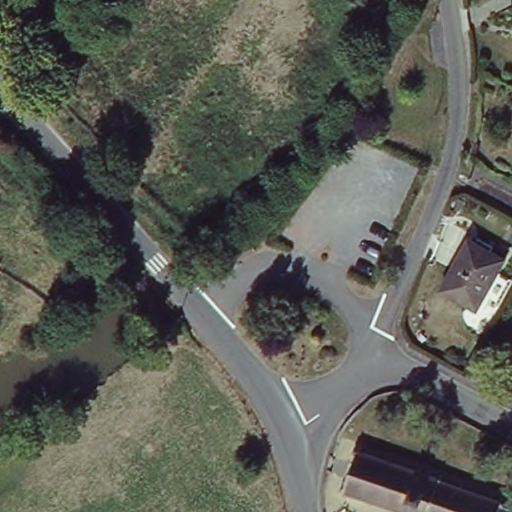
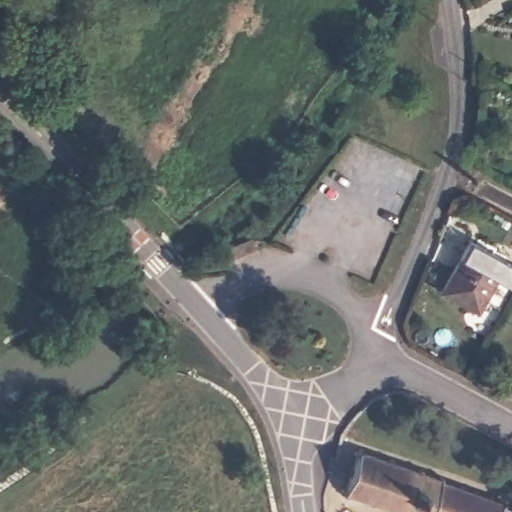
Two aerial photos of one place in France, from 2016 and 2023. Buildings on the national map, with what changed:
unchanged [(512,263),(512,288),(494,278),(475,309),(440,289),(468,239),(512,263)]
unchanged [(129,268),(139,278),(136,282),(132,287),(121,277),(127,271),(129,268)]
unchanged [(362,450),(363,447),(367,447),(366,451),(391,460),(392,457),(396,458),(395,461),(421,471),(423,467),(427,468),(425,472),(441,478),(443,475),(447,476),(445,480),(462,486),(463,482),(468,485),(466,487),(476,491),(476,488),(481,490),(480,492),(492,497),(493,493),(497,495),(496,498),(503,500),(503,497),(507,498),(506,502),(511,503),(510,506),(512,507),(512,512),(405,512),(378,502),(377,506),(372,504),(373,500),(353,493),(352,497),(346,495),(348,491),(344,490),(346,486),(349,487),(352,479),(348,477),(354,462),(357,463),(360,455),(357,453),(359,448),(362,450)]

